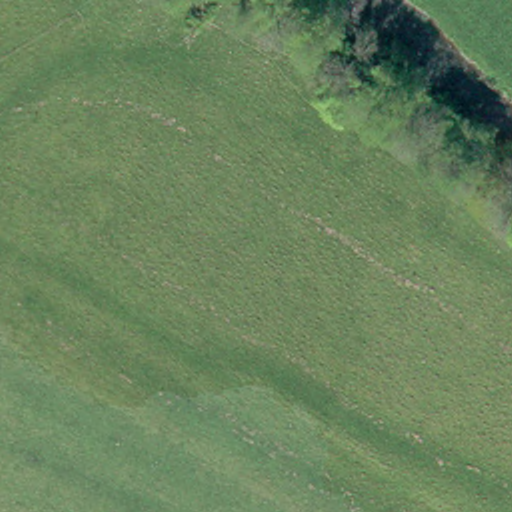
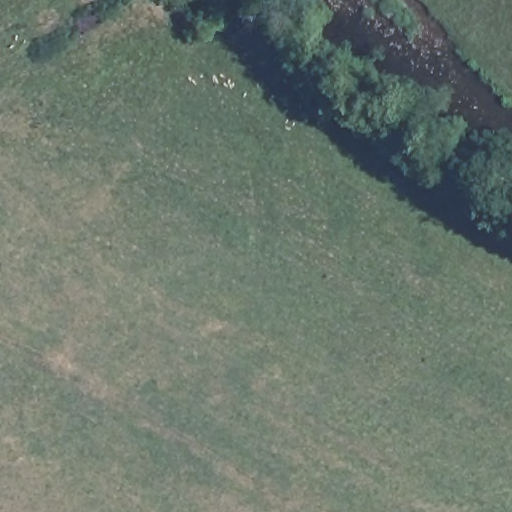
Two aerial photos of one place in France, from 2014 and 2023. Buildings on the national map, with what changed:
[]

